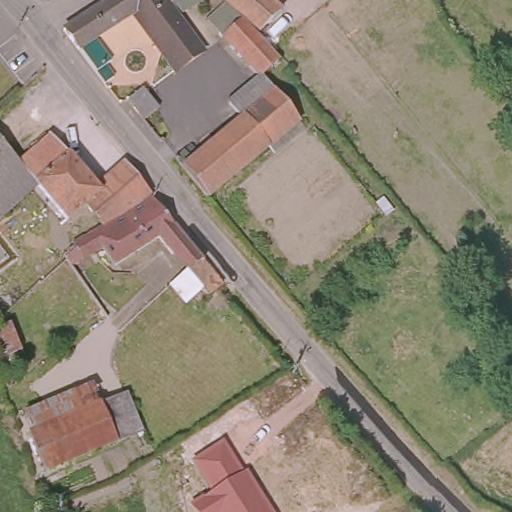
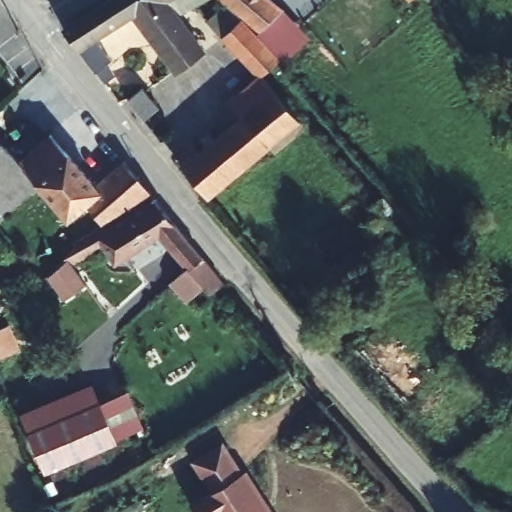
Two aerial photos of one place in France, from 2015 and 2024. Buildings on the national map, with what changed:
unchanged [(205,52),(180,69),(142,9),(100,38),(115,62),(110,66),(120,79),(110,85),(68,32),(118,0),(214,0),(182,15),(205,52)]
unchanged [(256,31),(248,22),(230,8),(218,0),(276,0),(286,6),(256,31)]
unchanged [(248,22),(280,61),(262,76),(212,24),(230,8),(248,22)]
unchanged [(493,20),(512,42),(512,56),(488,76),(463,46),(493,20)]
unchanged [(195,148),(203,156),(243,120),(230,101),(253,81),(268,81),(271,85),(300,122),(212,202),(180,162),(195,148)]
unchanged [(140,88),(157,110),(142,122),(125,100),(140,88)]
unchanged [(95,189),(125,164),(152,198),(149,199),(92,234),(82,240),(80,237),(97,223),(92,217),(72,230),(37,187),(17,164),(18,163),(50,135),(95,189)]
unchanged [(17,164),(37,187),(0,217),(0,143),(17,164)]
unchanged [(82,240),(92,234),(149,199),(152,198),(187,244),(170,253),(157,240),(115,267),(102,249),(72,268),(63,258),(76,247),(73,242),(80,237),(82,240)]
unchanged [(221,286),(207,298),(183,269),(170,253),(187,244),(221,286)]
unchanged [(0,345),(0,336),(22,328),(30,349),(7,360),(0,345)]
unchanged [(40,437),(32,418),(55,408),(104,387),(112,407),(40,437)]
unchanged [(155,435),(128,446),(112,407),(140,396),(155,435)]
unchanged [(128,446),(118,450),(57,476),(40,437),(112,407),(128,446)]
unchanged [(190,504),(209,492),(192,464),(223,443),(240,473),(247,468),(273,512),(194,512),(190,504)]

